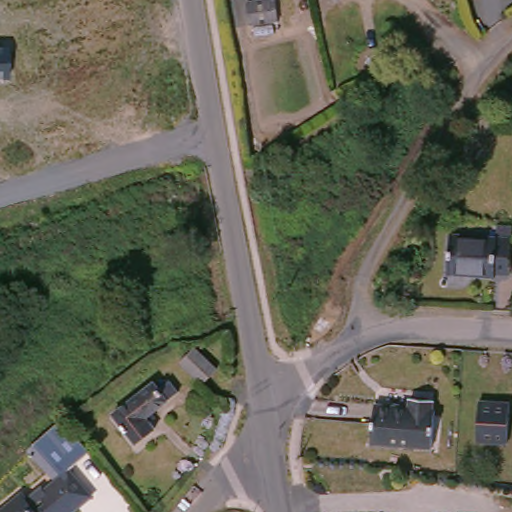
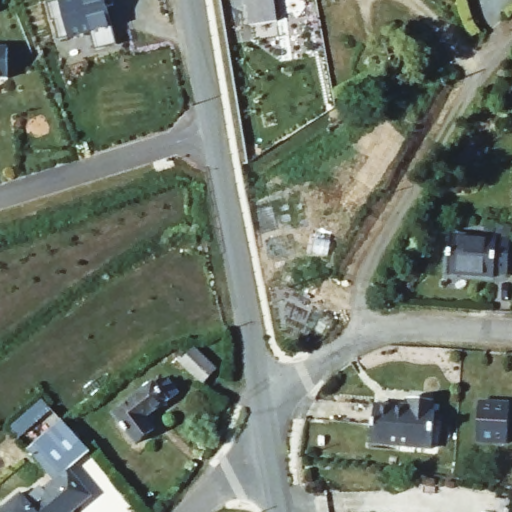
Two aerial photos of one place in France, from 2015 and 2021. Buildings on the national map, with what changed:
new [(66,0),(114,0),(116,6),(109,8),(119,46),(97,51),(92,33),(61,41),(56,22),(54,22),(49,5),(66,0)]
unchanged [(245,0),(272,0),(273,16),(246,17),(245,0)]
unchanged [(7,80),(0,80),(0,47),(8,47),(7,80)]
unchanged [(508,245),(506,281),(492,280),(492,283),(447,281),(449,241),(508,245)]
unchanged [(191,356),(214,376),(200,392),(177,371),(191,356)]
unchanged [(155,388),(168,407),(146,424),(155,436),(136,450),(113,421),(155,388)]
unchanged [(374,413),(409,416),(410,407),(432,409),(431,418),(435,418),(431,456),(370,450),(374,413)]
unchanged [(475,407),(504,411),(501,450),(472,447),(475,407)]
unchanged [(23,500),(38,487),(40,490),(58,475),(30,443),(45,430),(46,430),(59,419),(79,442),(87,451),(75,461),(66,468),(88,495),(69,512),(0,512),(0,507),(17,492),(23,500)]

